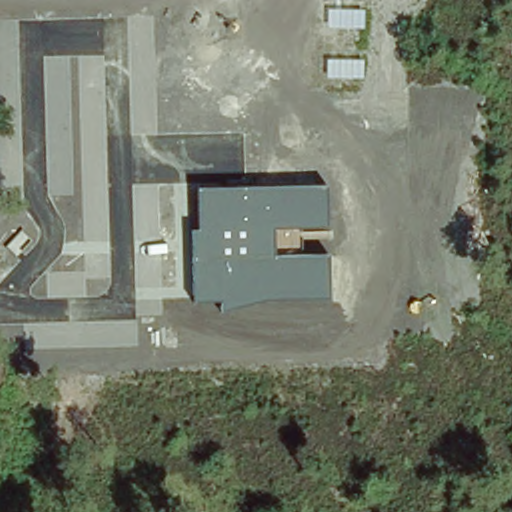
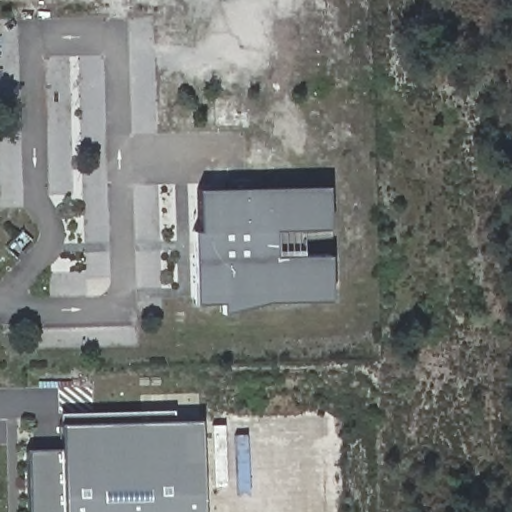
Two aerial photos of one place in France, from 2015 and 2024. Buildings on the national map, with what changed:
unchanged [(328,229),(300,230),(300,255),(330,255),(327,298),(261,300),(220,310),(220,302),(192,302),(192,230),(197,230),(195,189),(327,187),(328,229)]
new [(35,512),(34,453),(69,452),(69,422),(208,418),(210,512),(35,512)]

